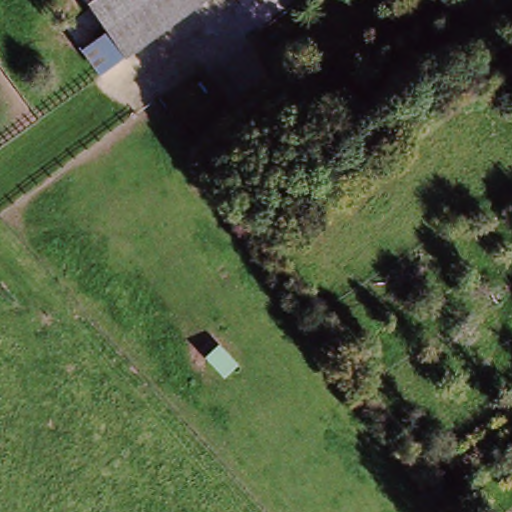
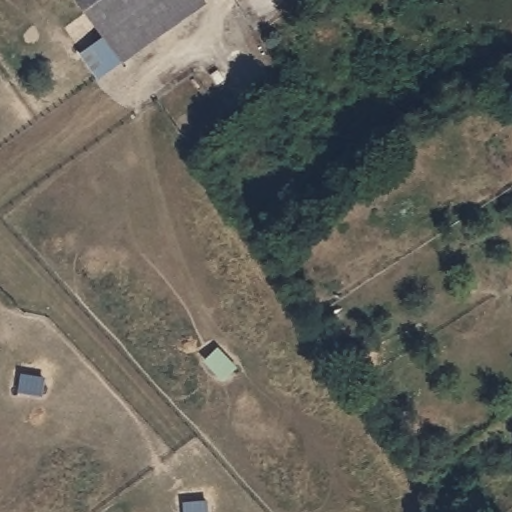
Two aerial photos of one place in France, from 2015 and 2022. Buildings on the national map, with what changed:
unchanged [(84,49),(106,34),(82,0),(207,0),(124,58),(102,74),(84,49)]

